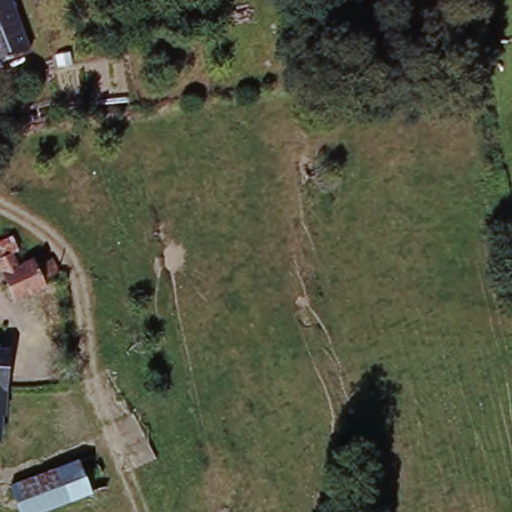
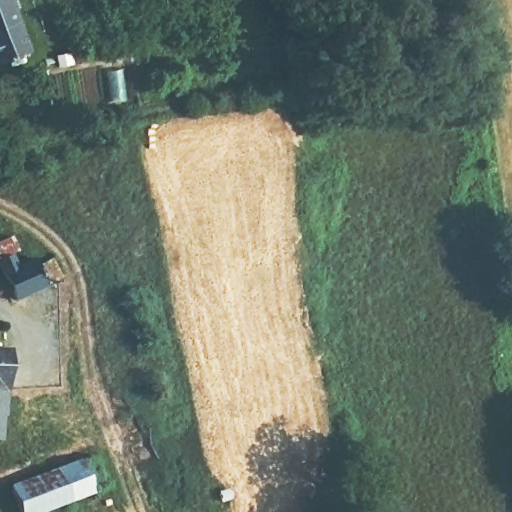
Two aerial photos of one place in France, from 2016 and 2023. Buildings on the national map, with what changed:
unchanged [(0,60),(0,0),(12,0),(31,46),(0,60)]
unchanged [(90,150),(90,151),(89,151),(89,152),(89,153),(89,154),(89,155),(88,155),(88,156),(87,156),(86,156),(86,157),(86,158),(85,158),(85,159),(84,159),(83,159),(83,160),(82,160),(81,160),(80,160),(79,160),(78,160),(77,160),(76,160),(76,159),(75,159),(74,159),(74,158),(73,158),(73,157),(72,157),(72,156),(71,156),(71,155),(71,154),(70,154),(70,153),(70,152),(70,151),(70,150),(70,149),(70,148),(70,147),(70,146),(70,145),(71,145),(71,144),(72,143),(73,142),(74,142),(74,141),(75,141),(75,140),(76,140),(77,140),(78,140),(79,140),(80,140),(81,140),(82,140),(83,140),(84,140),(84,141),(85,141),(86,142),(86,143),(87,143),(87,144),(88,144),(88,145),(89,145),(89,146),(89,147),(89,148),(89,149),(90,149),(90,150)]
unchanged [(16,258),(23,266),(34,261),(39,266),(55,260),(64,276),(46,283),(50,292),(21,304),(8,282),(10,281),(3,265),(16,258)]
unchanged [(14,386),(11,385),(8,435),(0,435),(0,347),(13,348),(14,386)]
unchanged [(110,486),(42,512),(23,512),(12,485),(96,453),(110,486)]

